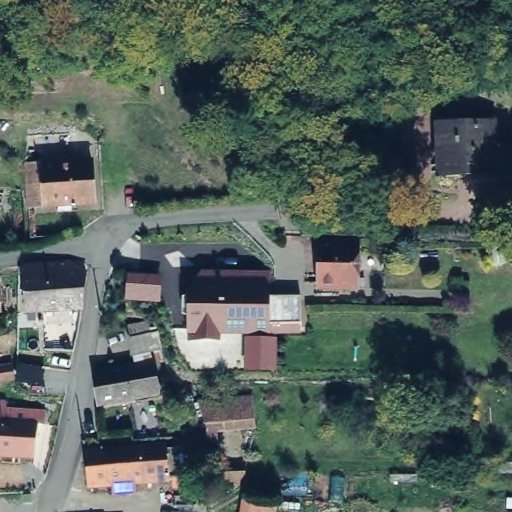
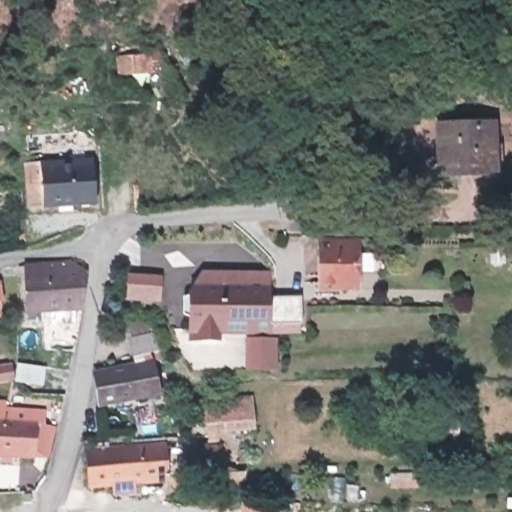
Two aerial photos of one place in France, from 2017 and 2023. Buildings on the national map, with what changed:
unchanged [(485,119),(486,164),(451,164),(451,171),(432,171),(433,119),(485,119)]
unchanged [(95,150),(96,194),(30,197),(26,155),(95,150)]
unchanged [(27,300),(26,266),(19,264),(19,261),(19,256),(63,250),(81,260),(82,298),(73,299),(27,300)]
unchanged [(353,250),(355,293),(315,294),(312,250),(353,250)]
unchanged [(3,299),(0,300),(0,268),(1,267),(3,299)]
unchanged [(190,287),(201,270),(271,271),(270,297),(298,297),(299,334),(220,335),(220,340),(198,340),(197,334),(188,334),(190,287)]
unchanged [(125,301),(127,272),(160,275),(160,302),(125,301)]
unchanged [(170,347),(143,351),(141,335),(167,332),(170,347)]
unchanged [(15,361),(0,364),(0,338),(12,337),(15,361)]
unchanged [(277,340),(276,372),(245,372),(245,339),(277,340)]
unchanged [(102,368),(162,360),(167,393),(105,399),(102,368)]
unchanged [(0,451),(0,397),(10,397),(12,417),(40,419),(37,452),(0,451)]
unchanged [(250,405),(252,426),(200,431),(199,411),(250,405)]
unchanged [(170,441),(170,474),(80,478),(80,444),(170,441)]
unchanged [(276,505),(276,512),(240,512),(242,499),(276,505)]
unchanged [(123,512),(75,512),(95,509),(122,505),(123,512)]

